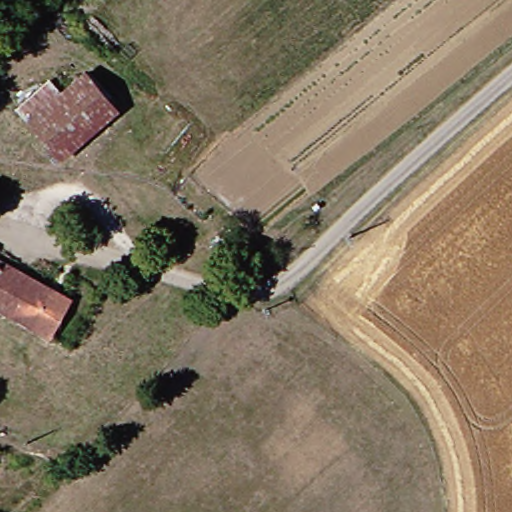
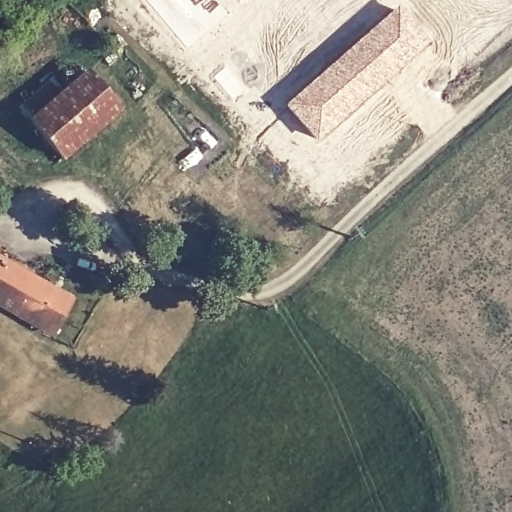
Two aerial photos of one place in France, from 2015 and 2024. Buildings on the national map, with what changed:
new [(398,5),(430,42),(315,143),(284,106),(398,5)]
unchanged [(5,77),(0,81),(0,71),(5,77)]
unchanged [(39,125),(95,75),(126,112),(74,162),(39,125)]
unchanged [(0,255),(0,244),(4,246),(0,255)]
unchanged [(82,308),(60,344),(0,307),(0,258),(82,308)]

